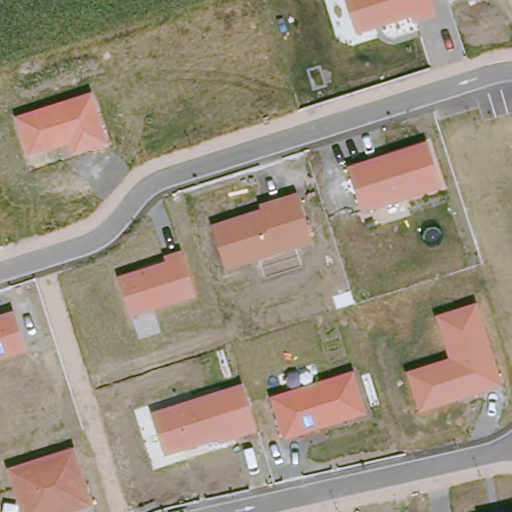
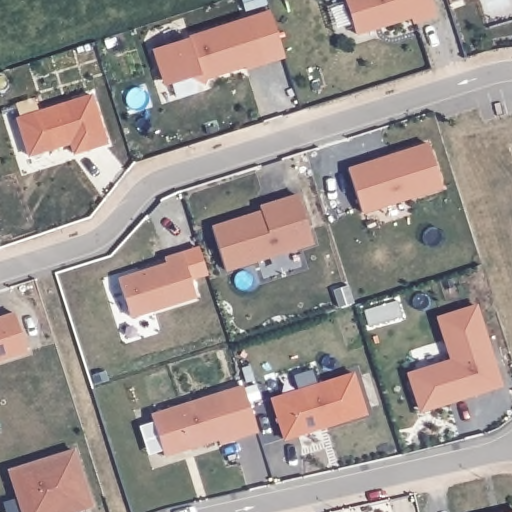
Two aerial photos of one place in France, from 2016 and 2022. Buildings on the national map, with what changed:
unchanged [(436,18),(414,24),(411,17),(359,34),(346,0),(430,0),(436,18)]
new [(154,50),(251,17),(267,64),(249,71),(247,67),(207,79),(208,82),(203,84),(190,78),(164,86),(154,50)]
unchanged [(93,93),(108,144),(73,154),(70,143),(28,157),(14,117),(93,93)]
unchanged [(427,141),(441,186),(362,212),(347,167),(427,141)]
unchanged [(262,210),(260,204),(298,194),(312,242),(225,269),(211,225),(262,210)]
unchanged [(165,261),(164,256),(183,251),(197,297),(131,317),(119,277),(165,261)]
unchanged [(449,359),(435,317),(476,302),(503,386),(420,413),(406,373),(449,359)]
unchanged [(14,311),(26,350),(0,359),(0,316),(14,311)]
unchanged [(354,371),(368,414),(284,440),(270,398),(354,371)]
unchanged [(243,384),(258,432),(219,444),(217,439),(165,457),(152,413),(243,384)]
unchanged [(93,505),(72,512),(21,512),(7,469),(74,447),(93,505)]

